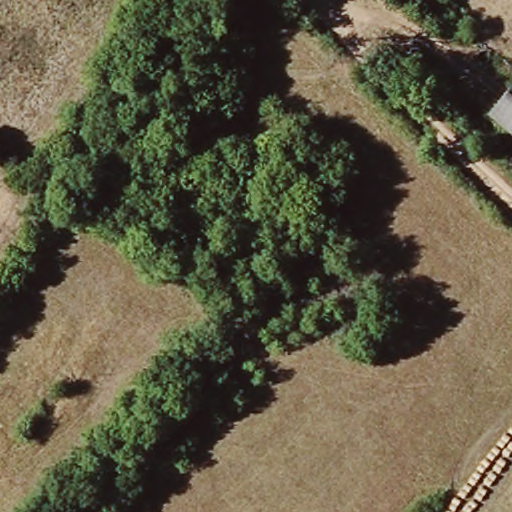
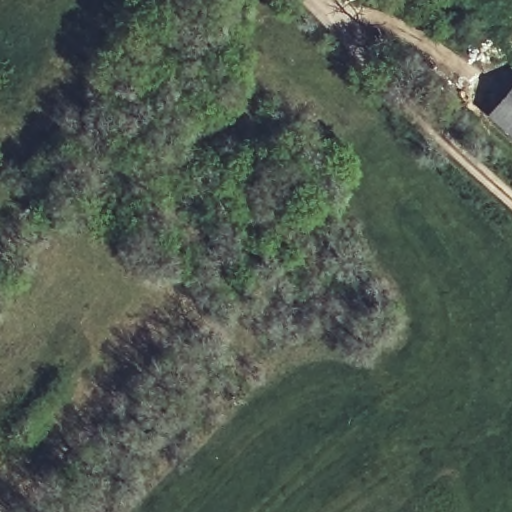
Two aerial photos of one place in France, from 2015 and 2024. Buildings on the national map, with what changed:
unchanged [(486,120),(512,88),(512,141),(486,120)]

